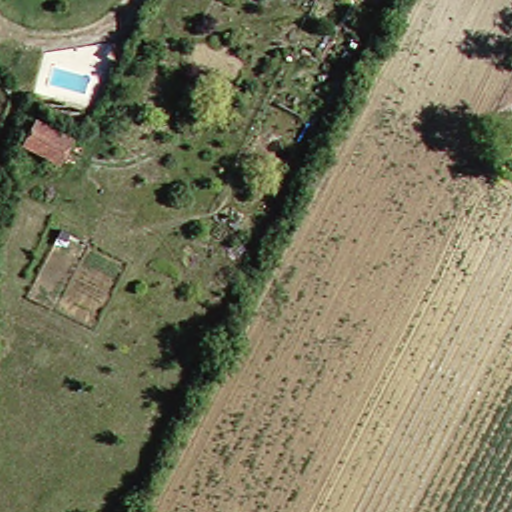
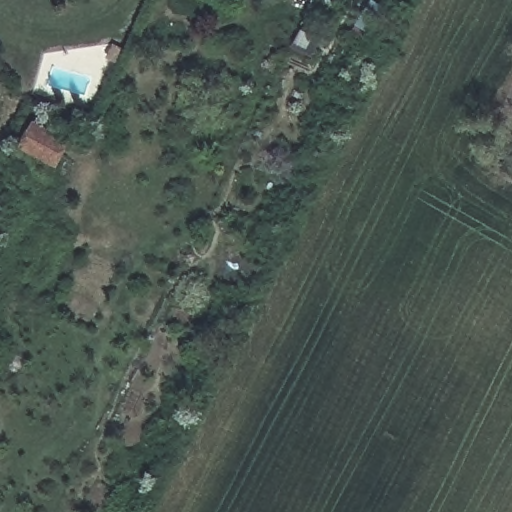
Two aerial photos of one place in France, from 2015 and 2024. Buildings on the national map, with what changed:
unchanged [(74,142),(56,173),(19,150),(34,120),(74,142)]

